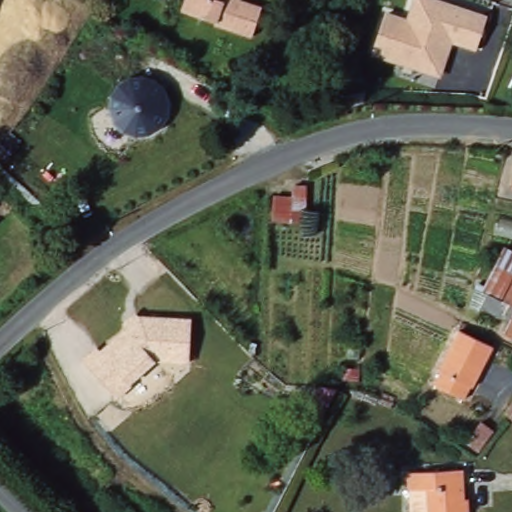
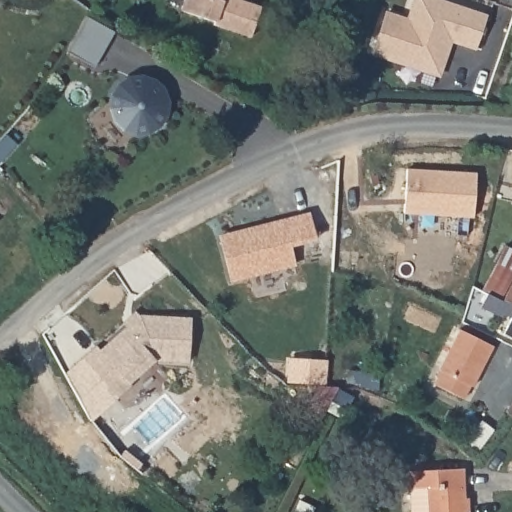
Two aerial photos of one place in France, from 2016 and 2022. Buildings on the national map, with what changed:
unchanged [(255,37),(218,25),(219,22),(182,9),(184,0),(250,0),(264,4),(255,37)]
unchanged [(452,43),(441,77),(371,56),(385,10),(408,16),(413,0),(446,0),(487,14),(476,50),(452,43)]
unchanged [(167,110),(166,119),(161,128),(154,133),(143,135),(130,135),(118,127),(110,117),(110,107),(111,94),(118,83),(129,77),(143,76),(156,80),(164,89),(167,110)]
new [(474,217),(404,213),(407,168),(477,172),(474,217)]
new [(309,210),(316,240),(292,248),(296,264),(231,282),(218,234),(309,210)]
unchanged [(4,232),(0,236),(0,228),(4,232)]
unchanged [(512,256),(512,281),(501,301),(487,295),(481,292),(502,251),(512,256)]
unchanged [(504,320),(480,310),(487,295),(501,301),(508,304),(512,305),(512,319),(505,315),(504,320)]
unchanged [(512,297),(512,305),(508,304),(512,297)]
unchanged [(189,363),(159,359),(115,397),(79,359),(95,346),(99,351),(126,327),(122,322),(132,313),(138,316),(190,317),(189,363)]
unchanged [(512,340),(506,338),(512,326),(512,340)]
unchanged [(478,389),(474,387),(467,400),(439,385),(446,372),(444,371),(465,331),(498,349),(478,389)]
unchanged [(512,399),(512,415),(505,409),(512,399)]
unchanged [(474,424),(487,434),(476,452),(462,444),(474,424)]
unchanged [(472,512),(435,512),(434,488),(414,490),(413,470),(467,467),(472,512)]
unchanged [(414,490),(434,488),(435,512),(416,512),(414,490)]

